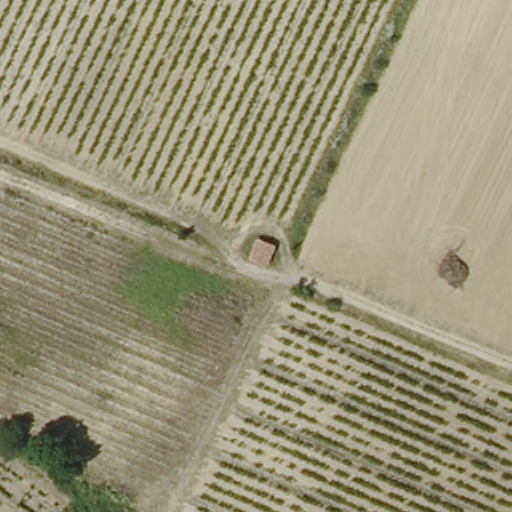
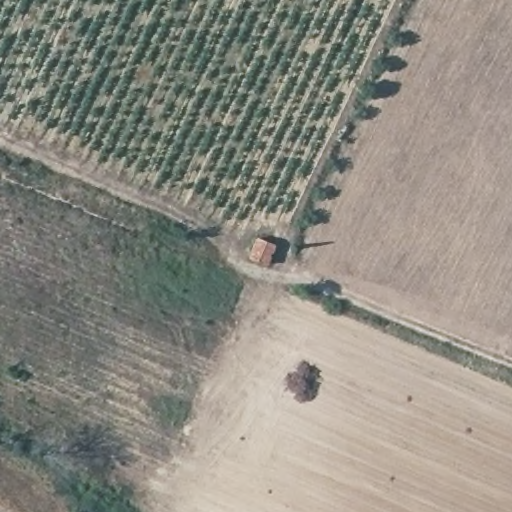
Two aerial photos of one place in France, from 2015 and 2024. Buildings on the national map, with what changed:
unchanged [(274,266),(253,256),(265,231),(284,240),(274,266)]

